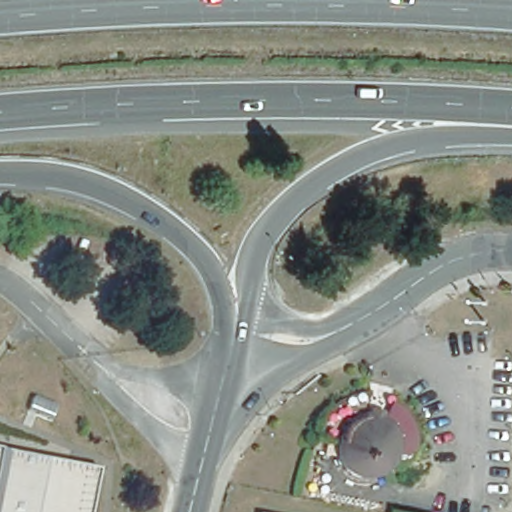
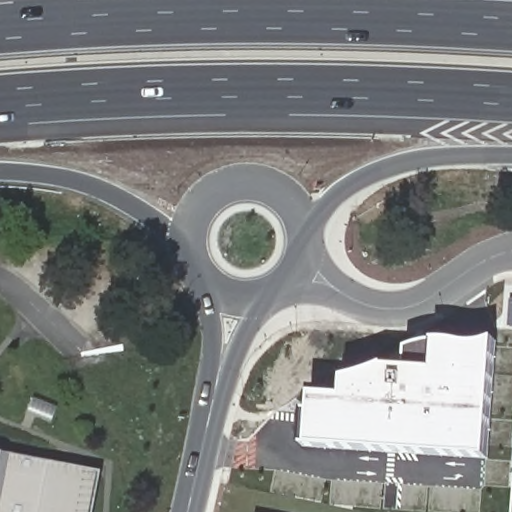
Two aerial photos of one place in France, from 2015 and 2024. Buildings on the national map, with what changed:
new [(313,397),(345,398),(345,381),(385,365),(407,366),(407,347),(429,340),(438,342),(473,345),(494,343),(488,457),(312,444),(313,397)]
demolished [(382,419),(381,424),(384,425),(387,428),(391,432),(394,436),(395,440),(397,445),(398,449),(398,455),(396,462),(394,468),(390,474),(387,477),(384,480),(380,482),(376,483),(371,485),(367,485),(365,485),(360,485),(356,484),(351,482),(346,479),(342,475),(339,472),(337,468),(335,463),(334,459),(333,454),(333,449),(334,442),(337,437),(338,435),(341,431),(345,428),(348,425),(353,422),(357,421),(361,420),(364,420),(366,419),(367,415),(382,419)]
unchanged [(0,454),(93,473),(85,512),(0,512),(0,454)]

